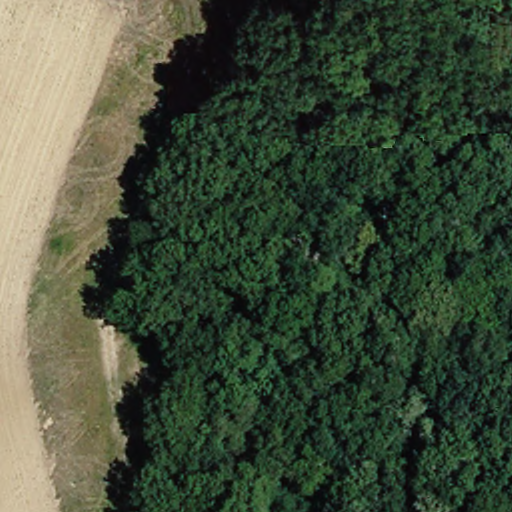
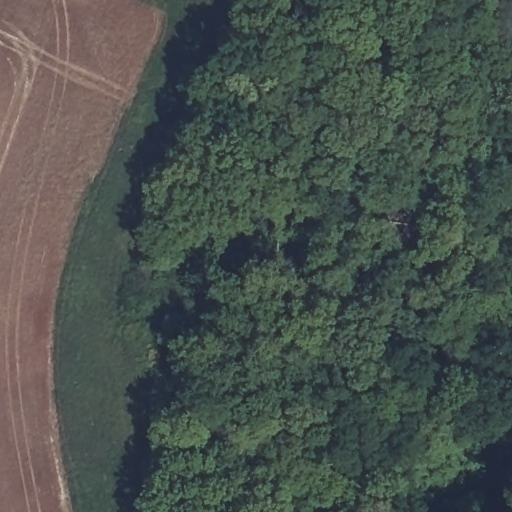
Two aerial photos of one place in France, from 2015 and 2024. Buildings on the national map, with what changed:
unchanged [(231,221),(232,225),(230,228),(227,230),(224,230),(220,225),(220,222),(222,219),(226,217),(229,218),(231,221)]

